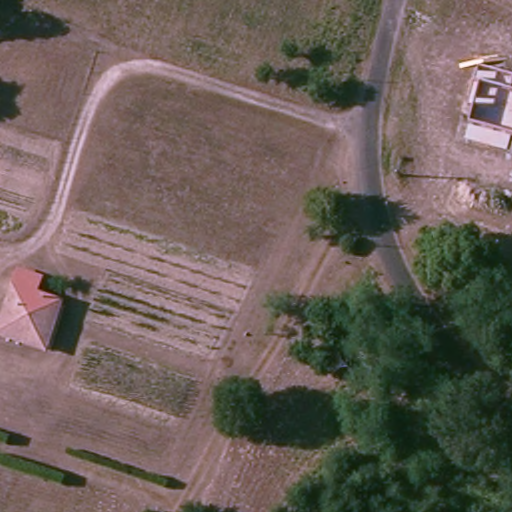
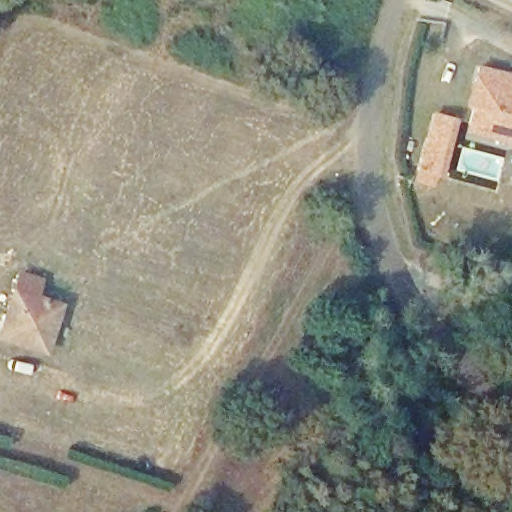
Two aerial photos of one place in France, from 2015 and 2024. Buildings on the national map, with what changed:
new [(512,74),(512,142),(465,131),(471,106),(467,105),(475,64),(512,74)]
new [(458,117),(442,178),(417,172),(432,111),(458,117)]
unchanged [(0,329),(0,317),(18,267),(41,274),(37,287),(41,288),(24,337),(0,329)]
unchanged [(55,295),(48,322),(55,326),(50,345),(24,337),(41,288),(55,295)]

